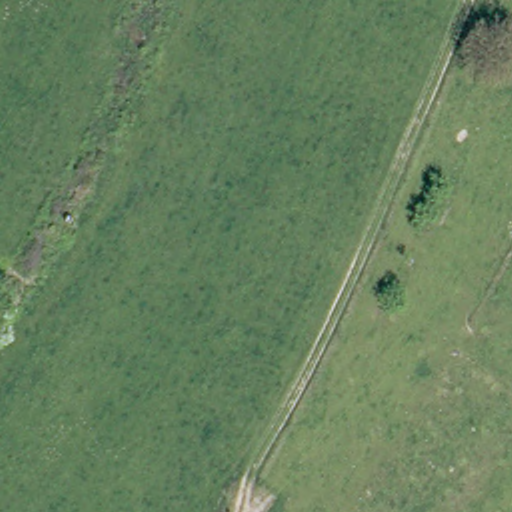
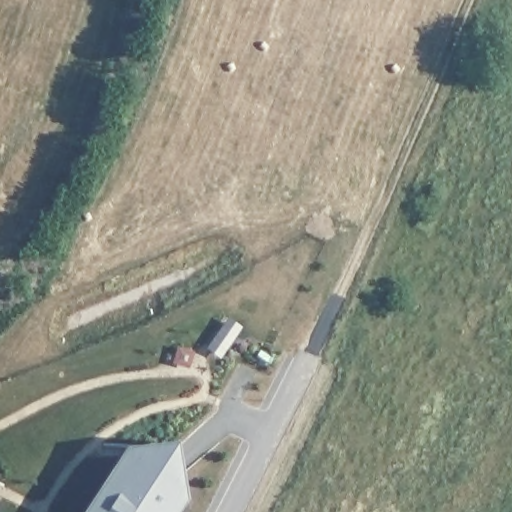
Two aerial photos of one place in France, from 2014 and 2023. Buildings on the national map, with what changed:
new [(121,448),(173,445),(185,500),(177,512),(80,512),(121,448)]

